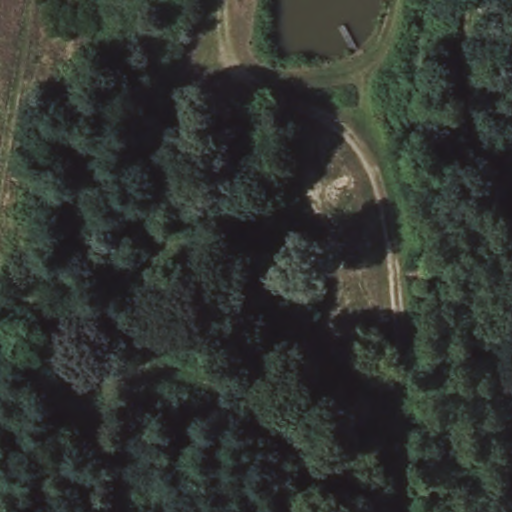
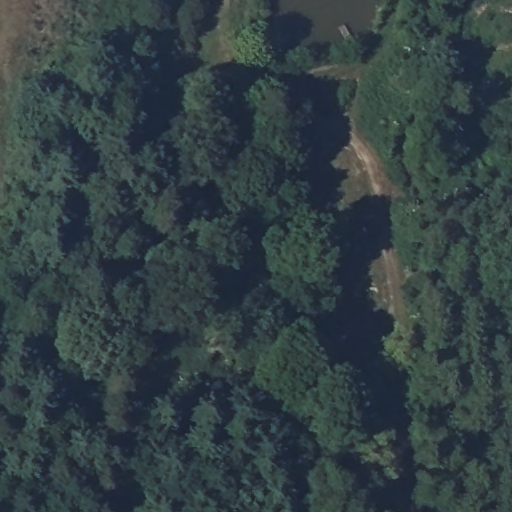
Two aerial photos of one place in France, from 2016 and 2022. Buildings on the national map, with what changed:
unchanged [(224,128),(241,127),(242,147),(225,149),(224,128)]

